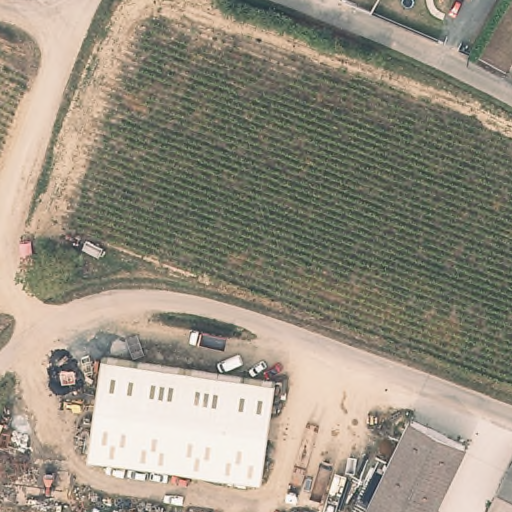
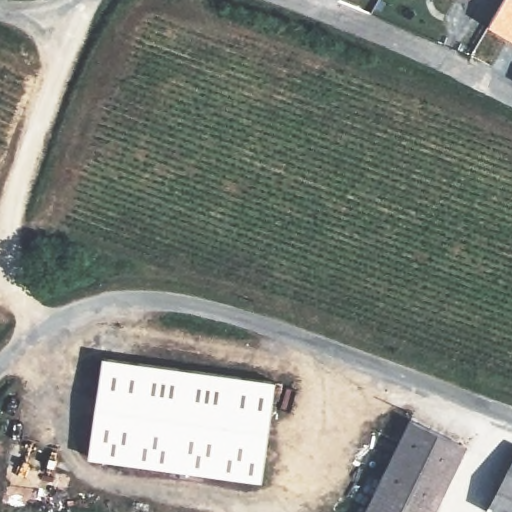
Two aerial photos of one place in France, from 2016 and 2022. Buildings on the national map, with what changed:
unchanged [(100,356),(273,378),(260,477),(88,453),(100,356)]
unchanged [(466,447),(435,512),(368,512),(390,465),(411,421),(466,447)]
unchanged [(512,464),(512,465),(512,512),(497,512),(489,508),(512,464)]

